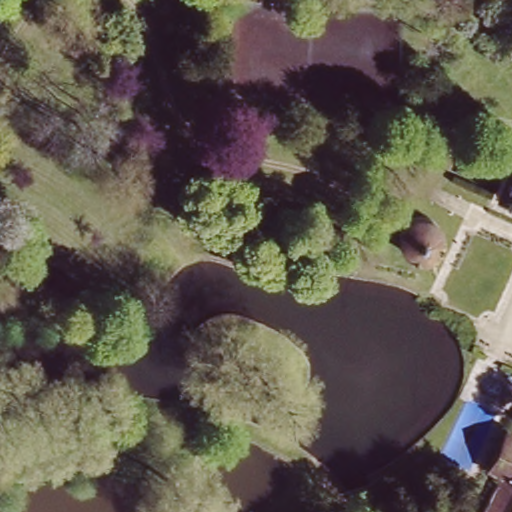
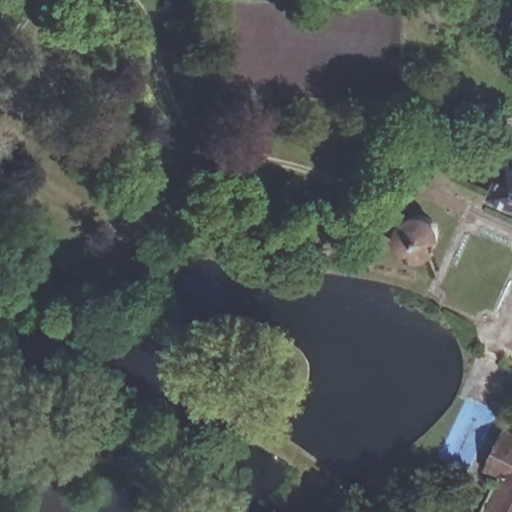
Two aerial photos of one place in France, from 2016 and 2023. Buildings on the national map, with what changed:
unchanged [(511,145),(512,146),(512,191),(493,183),(511,145)]
unchanged [(398,220),(401,217),(404,214),(410,213),(415,212),(423,213),(429,217),(434,224),(437,233),(437,239),(433,245),(428,251),(419,255),(411,255),(400,250),(397,245),(393,237),(393,231),(395,223),(398,220)]
unchanged [(487,464),(504,428),(512,431),(512,477),(499,470),(487,464)]
unchanged [(512,477),(512,512),(477,512),(499,470),(512,477)]

